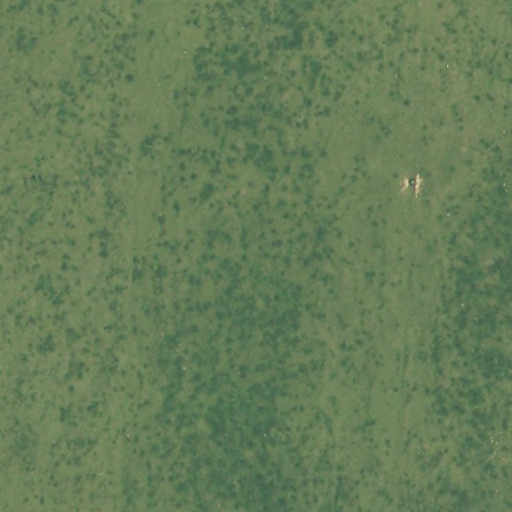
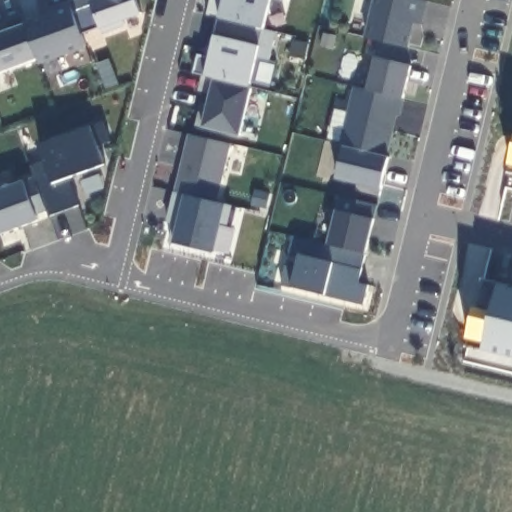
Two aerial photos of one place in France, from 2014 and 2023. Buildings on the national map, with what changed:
new [(142,0),(147,14),(129,21),(131,25),(109,34),(107,29),(88,36),(76,3),(75,1),(76,0),(142,0)]
new [(231,0),(278,0),(271,30),(224,18),(214,16),(218,0),(231,0)]
new [(282,0),(291,0),(290,2),(282,0)]
new [(415,24),(408,49),(365,38),(374,0),(419,0),(427,2),(422,26),(415,24)]
new [(60,15),(57,10),(76,3),(88,36),(92,46),(45,64),(44,61),(31,25),(60,15)]
new [(13,24),(28,18),(31,25),(44,61),(0,77),(0,37),(16,31),(13,24)]
new [(205,56),(217,59),(219,48),(217,48),(224,18),(271,30),(268,39),(281,41),(276,61),(264,58),(257,88),(210,76),(200,75),(205,56)]
new [(403,99),(390,158),(381,191),(380,198),(358,193),(357,184),(337,178),(345,147),(340,146),(355,87),(367,91),(375,58),(411,66),(403,99)]
new [(209,104),(215,106),(218,95),(206,92),(210,76),(257,88),(258,89),(247,137),(204,126),(209,104)]
new [(97,145),(105,165),(69,179),(81,207),(49,218),(47,212),(36,215),(39,223),(1,236),(0,235),(0,191),(25,182),(35,178),(31,166),(47,160),(41,146),(92,128),(104,123),(110,142),(97,145)]
new [(215,204),(226,206),(215,255),(175,244),(169,244),(182,189),(177,188),(191,136),(231,147),(215,204)]
new [(510,165),(512,157),(512,165),(510,165)]
new [(375,220),(366,255),(358,284),(368,286),(365,306),(326,296),(292,287),(282,287),(286,267),(297,268),(300,257),(288,255),(292,237),(315,242),(320,221),(334,223),(337,211),(341,197),(378,206),(375,220)]
new [(467,349),(469,338),(477,309),(484,310),(493,284),(512,287),(512,359),(467,349)]

